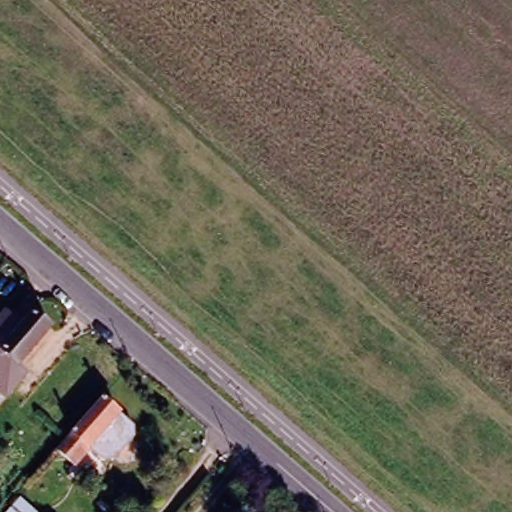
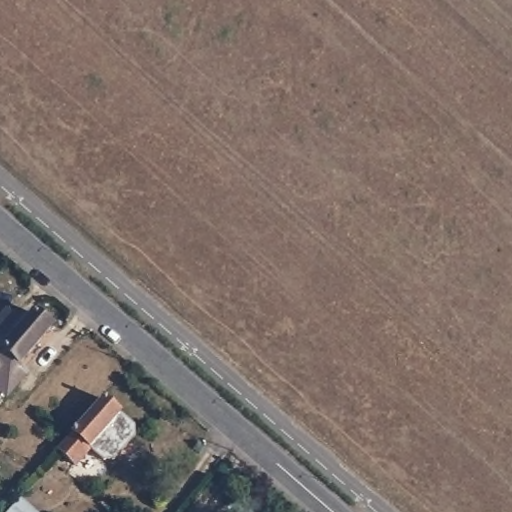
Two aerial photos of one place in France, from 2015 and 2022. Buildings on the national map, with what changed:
unchanged [(4,395),(0,392),(0,315),(7,307),(22,320),(32,308),(51,323),(19,361),(27,367),(17,379),(4,395)]
unchanged [(107,399),(137,427),(138,437),(119,460),(109,461),(93,448),(85,458),(68,444),(107,399)]
unchanged [(22,501),(36,512),(13,512),(22,501)]

